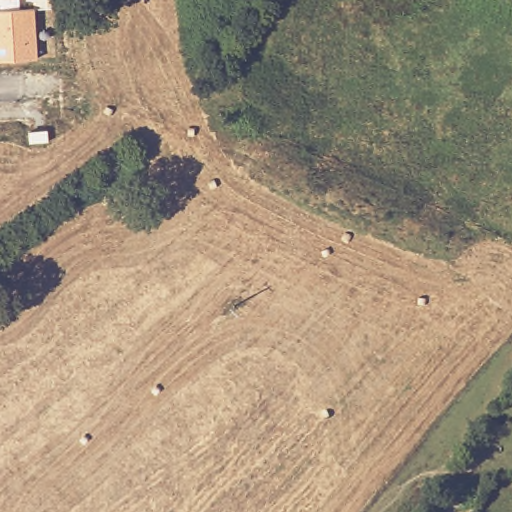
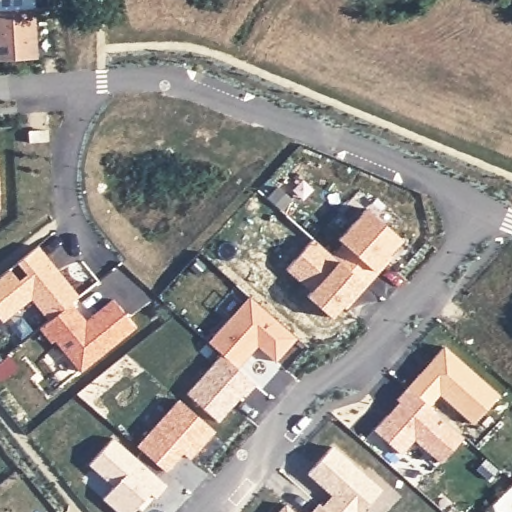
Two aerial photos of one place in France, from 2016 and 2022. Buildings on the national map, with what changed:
unchanged [(20,10),(35,10),(39,58),(0,61),(0,0),(20,0),(20,10)]
new [(312,237),(333,255),(342,243),(338,239),(366,207),(402,238),(390,253),(393,255),(347,308),(342,305),(331,318),(308,295),(312,290),(286,270),(312,237)]
new [(80,296),(72,302),(87,319),(113,298),(136,326),(81,372),(56,340),(52,343),(40,328),(50,319),(32,299),(3,323),(0,319),(0,276),(39,244),(80,296)]
new [(222,355),(207,342),(250,294),(298,337),(277,363),(258,346),(237,367),(256,384),(245,397),(242,395),(219,422),(187,393),(222,355)]
new [(398,402),(396,400),(443,345),(500,394),(473,425),(440,395),(430,406),(463,437),(441,464),(414,440),(401,454),(374,431),(398,402)]
new [(179,400),(215,430),(192,459),(182,451),(166,470),(138,446),(179,400)]
new [(167,485),(156,498),(154,497),(142,511),(137,507),(132,512),(117,512),(102,498),(113,486),(90,465),(113,437),(167,485)]
new [(335,489),(329,489),(310,471),(333,445),(382,490),(363,512),(329,512),(323,506),(335,495),(335,489)]
new [(323,506),(329,512),(309,512),(318,502),(323,506)]
new [(296,512),(278,512),(286,503),(296,512)]

